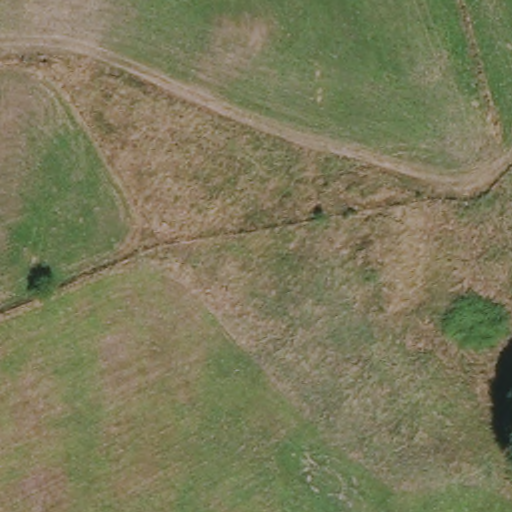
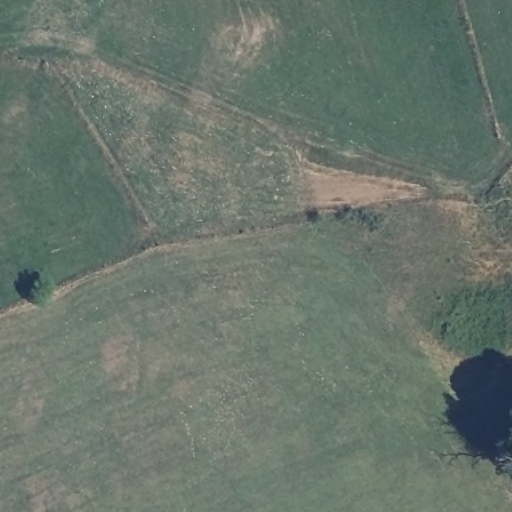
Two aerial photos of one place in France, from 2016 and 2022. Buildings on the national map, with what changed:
[]

